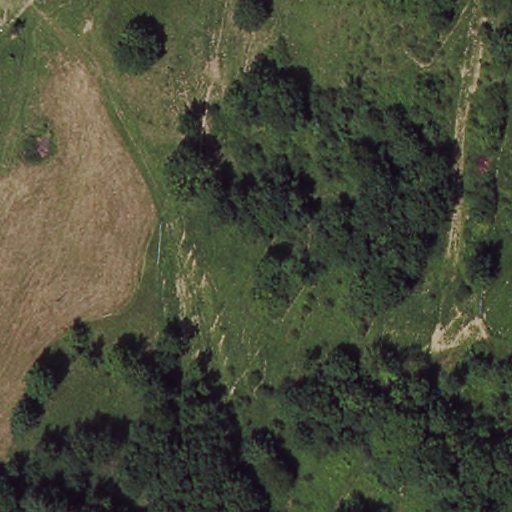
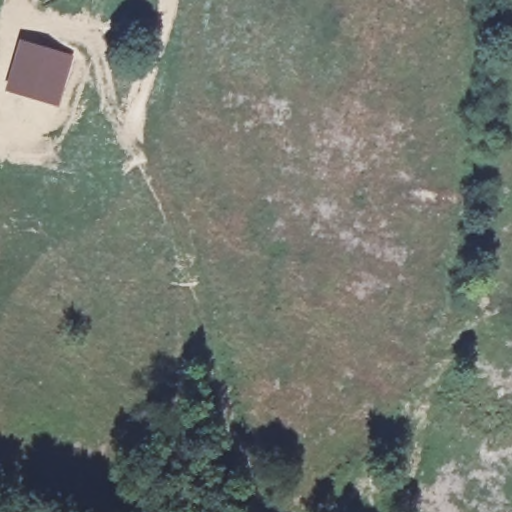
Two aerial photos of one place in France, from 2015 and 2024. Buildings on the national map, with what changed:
new [(16,38),(74,53),(59,107),(2,91),(16,38)]

